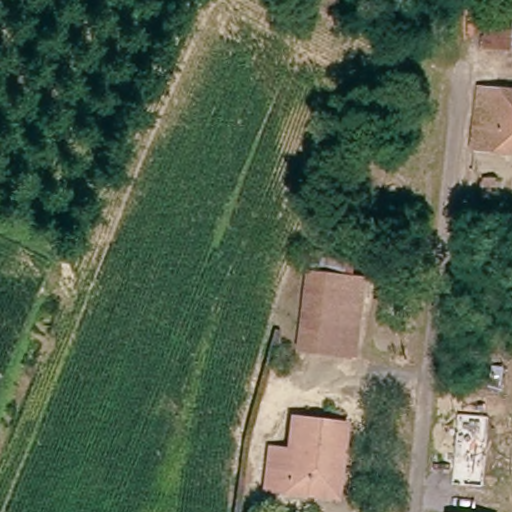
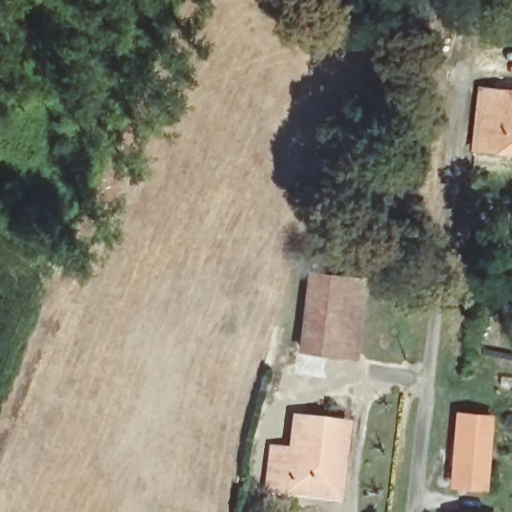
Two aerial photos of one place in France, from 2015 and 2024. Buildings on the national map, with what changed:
unchanged [(481,91),(512,93),(512,152),(476,149),(481,91)]
unchanged [(481,204),(484,177),(503,179),(501,206),(481,204)]
unchanged [(350,352),(297,350),(301,275),(354,278),(350,352)]
new [(486,488),(448,485),(455,410),(492,413),(486,488)]
unchanged [(308,498),(271,495),(273,452),(292,452),(293,425),(345,428),(341,488),(340,500),(308,498)]

